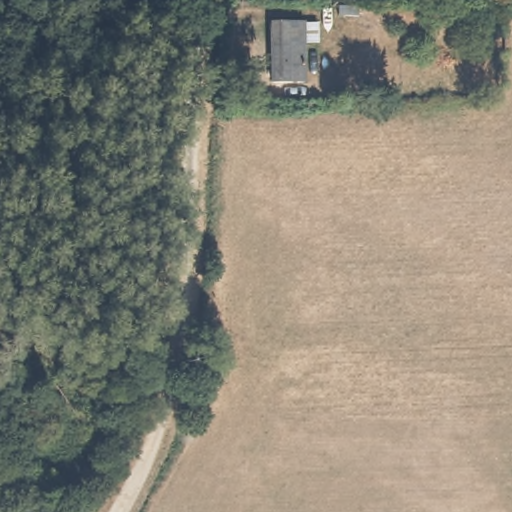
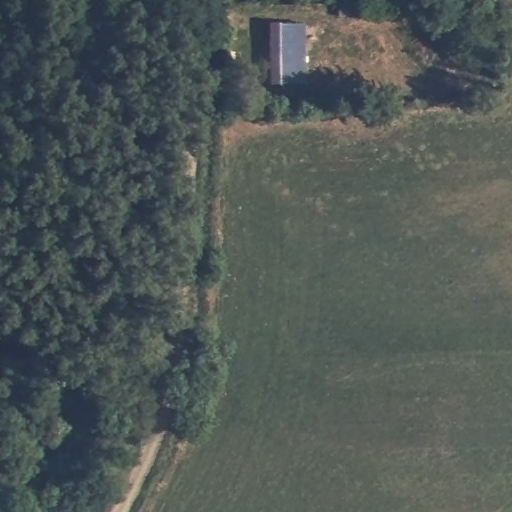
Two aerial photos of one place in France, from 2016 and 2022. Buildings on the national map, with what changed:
unchanged [(274,79),(275,42),(279,41),(280,18),(306,18),(305,79),(274,79)]

